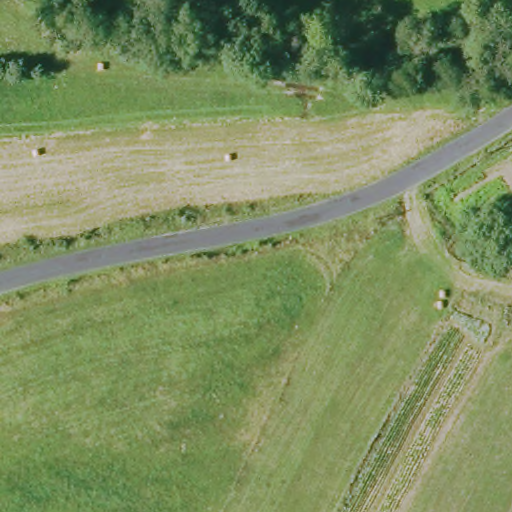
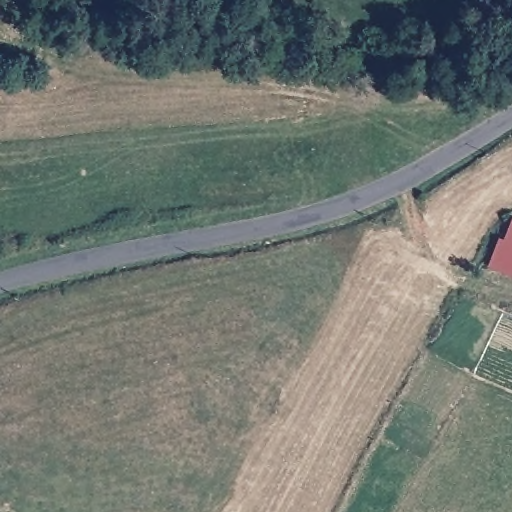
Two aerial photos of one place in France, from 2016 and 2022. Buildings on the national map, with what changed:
new [(489,267),(500,238),(506,240),(512,225),(512,275),(489,267)]

